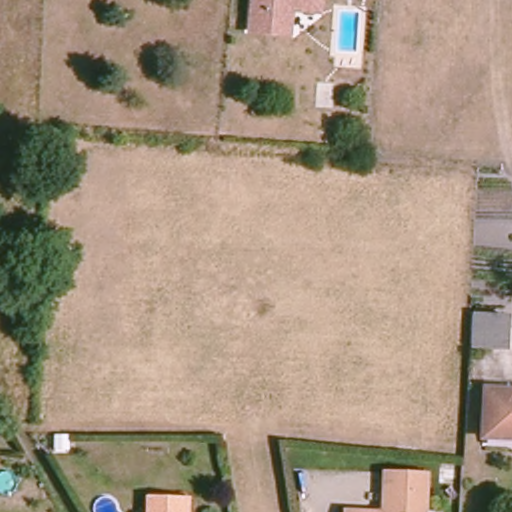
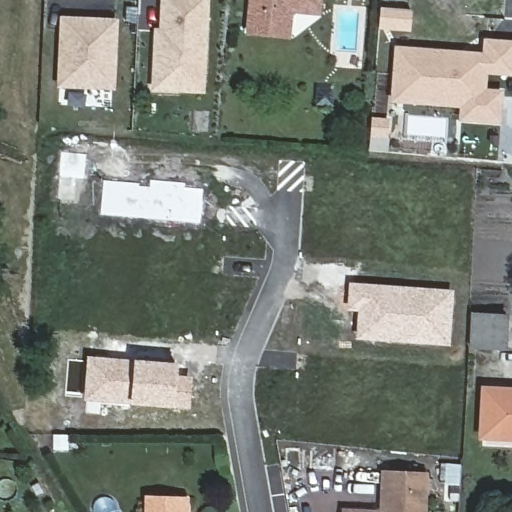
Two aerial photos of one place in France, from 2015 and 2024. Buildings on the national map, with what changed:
new [(152,28),(158,29),(160,0),(209,0),(204,94),(151,91),(152,28)]
unchanged [(296,6),(285,16),(283,33),(248,29),(251,0),(319,0),(318,9),(296,6)]
new [(56,87),(60,17),(120,19),(115,89),(56,87)]
new [(512,41),(512,76),(486,75),(485,89),(503,91),(500,124),(458,120),(459,109),(390,103),(395,46),(482,53),(483,39),(512,41)]
new [(368,149),(370,119),(390,120),(387,150),(368,149)]
new [(358,312),(346,310),(348,283),(454,289),(450,347),(355,339),(358,312)]
unchanged [(472,314),(505,316),(502,348),(470,345),(472,314)]
new [(133,359),(178,363),(178,375),(192,377),(190,409),(173,409),(130,404),(84,399),(87,357),(133,359)]
unchanged [(512,438),(481,437),(484,389),(512,390),(512,438)]
unchanged [(383,474),(426,477),(424,512),(381,512),(383,474)]
unchanged [(191,502),(190,512),(152,512),(152,499),(191,502)]

